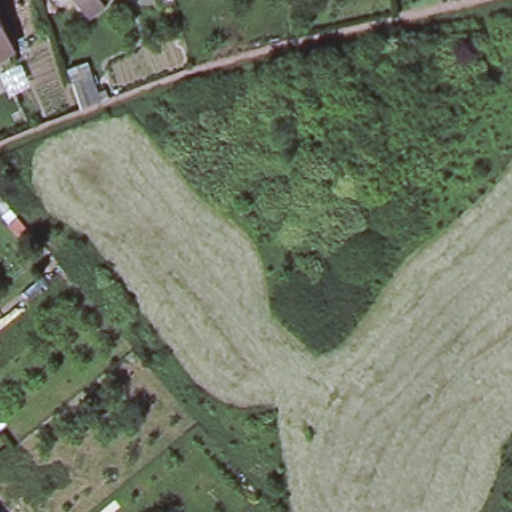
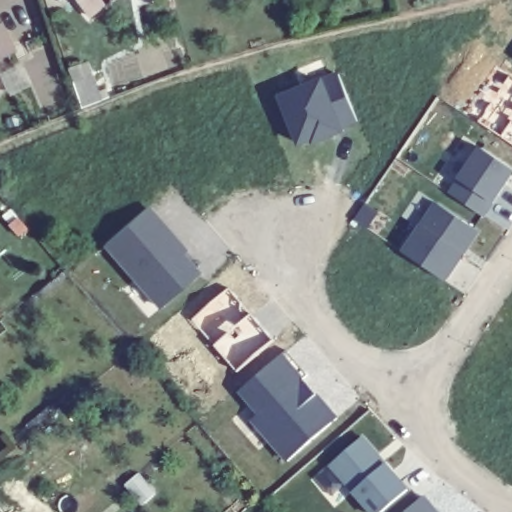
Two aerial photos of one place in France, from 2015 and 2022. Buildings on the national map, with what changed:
unchanged [(88,10),(80,0),(102,0),(88,10)]
unchanged [(0,54),(0,27),(12,48),(0,54)]
new [(358,121),(330,131),(332,135),(316,142),(314,138),(301,144),(281,96),(340,74),(358,121)]
unchanged [(92,76),(100,100),(80,107),(72,82),(92,76)]
new [(512,169),(512,179),(495,203),(485,218),(449,194),(457,179),(479,146),(512,169)]
new [(465,254),(447,282),(402,251),(420,224),(435,201),(480,231),(465,254)]
new [(187,248),(183,252),(200,271),(157,309),(102,245),(148,204),(187,248)]
new [(308,373),(304,377),(340,417),(287,462),(250,421),(257,414),(237,393),(287,350),(308,373)]
new [(410,488),(384,512),(370,512),(352,492),(330,466),(364,436),(387,461),(410,488)]

